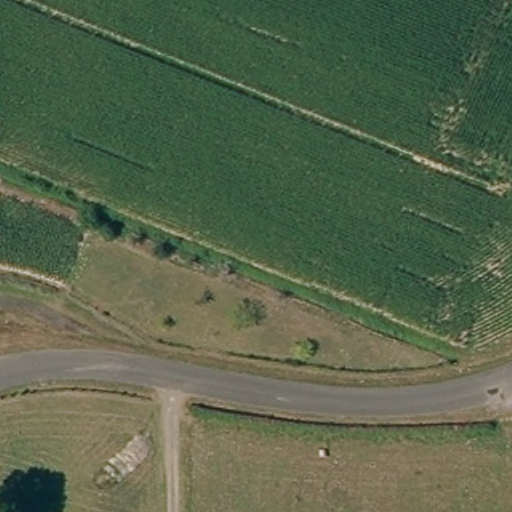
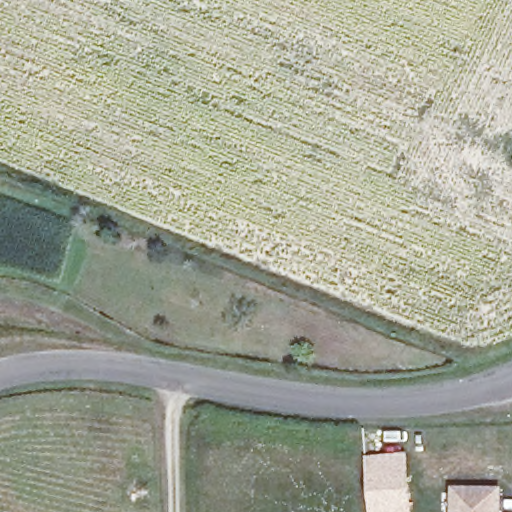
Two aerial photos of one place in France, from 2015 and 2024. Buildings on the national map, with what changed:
new [(413,512),(370,512),(366,457),(407,454),(413,512)]
new [(452,494),(497,494),(497,512),(452,512),(452,494)]

